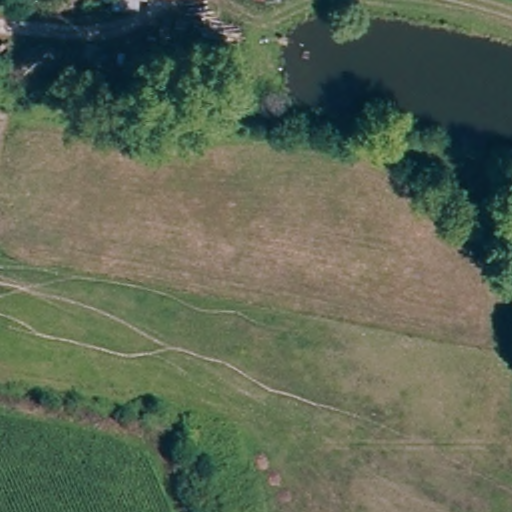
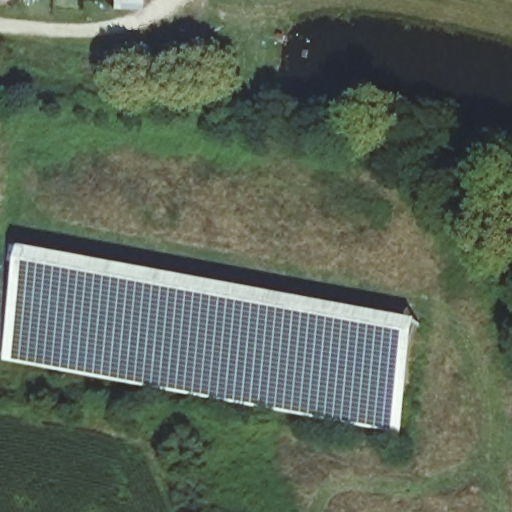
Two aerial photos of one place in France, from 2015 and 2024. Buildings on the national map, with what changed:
unchanged [(121,7),(121,0),(154,0),(154,7),(121,7)]
new [(422,322),(402,436),(6,363),(28,250),(422,322)]

